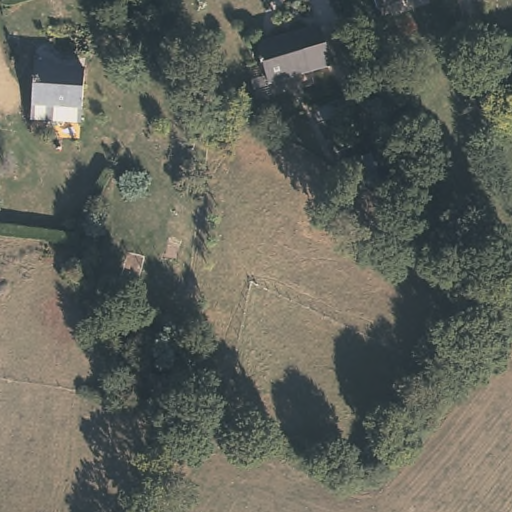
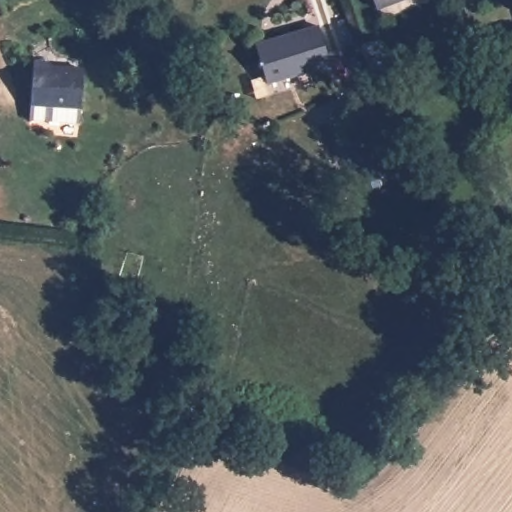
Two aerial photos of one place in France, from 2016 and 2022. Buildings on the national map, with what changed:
unchanged [(380,9),(377,0),(404,0),(380,9)]
unchanged [(330,67),(268,85),(256,46),(317,28),(330,67)]
unchanged [(386,68),(371,73),(361,46),(377,40),(386,68)]
unchanged [(52,65),(52,68),(85,73),(79,126),(30,120),(35,63),(52,65)]
unchanged [(385,184),(371,189),(363,166),(377,162),(385,184)]

